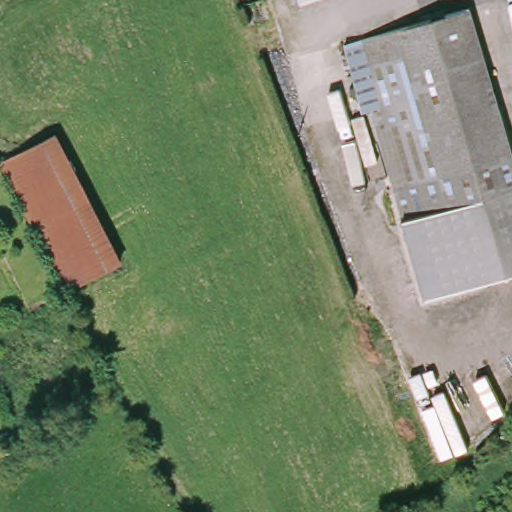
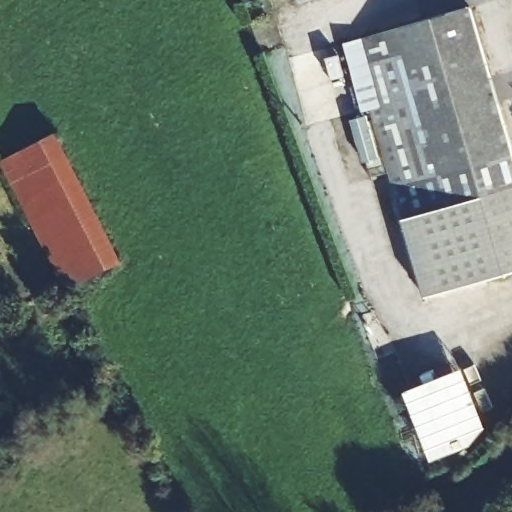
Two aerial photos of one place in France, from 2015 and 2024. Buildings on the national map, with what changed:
new [(295,6),(300,4),(298,0),(357,0),(300,19),(295,6)]
unchanged [(371,110),(362,112),(345,44),(471,6),(512,149),(512,272),(425,296),(404,220),(371,110)]
unchanged [(7,162),(60,132),(127,263),(70,290),(7,162)]
new [(491,434),(433,459),(405,389),(465,366),(491,434)]

